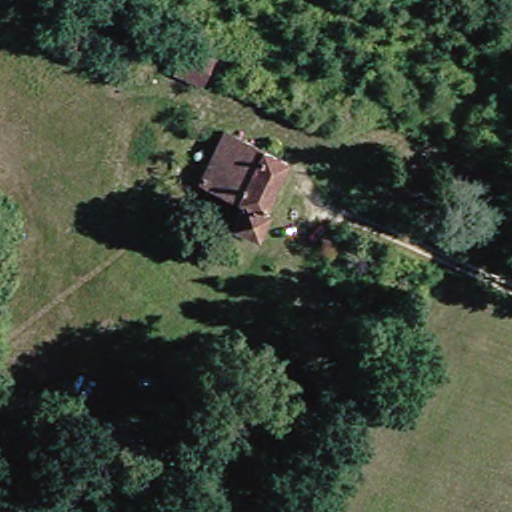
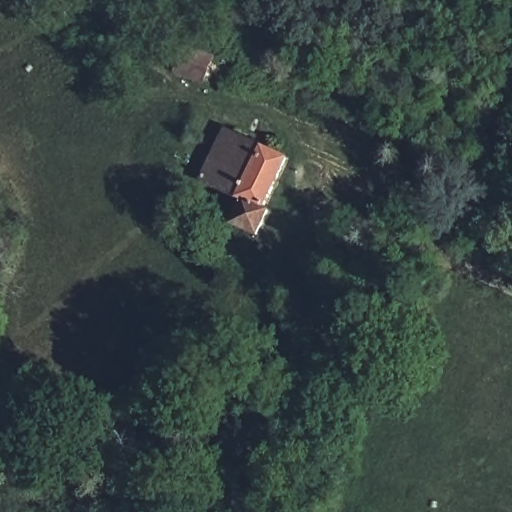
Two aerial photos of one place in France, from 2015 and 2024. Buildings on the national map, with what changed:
unchanged [(279,161),(259,209),(266,213),(253,244),(229,233),(242,206),(192,186),(202,156),(220,165),(230,141),(279,161)]

